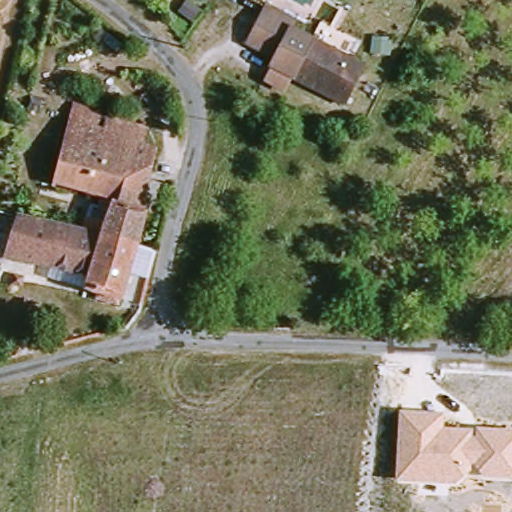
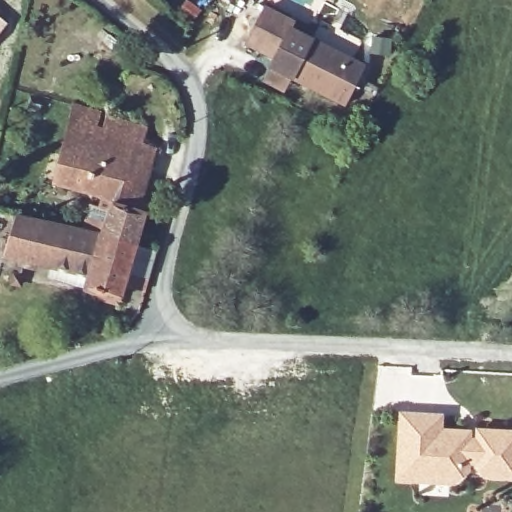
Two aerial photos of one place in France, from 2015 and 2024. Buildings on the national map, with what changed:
unchanged [(297,24),(294,30),(368,64),(349,104),(277,70),(280,61),(249,46),(267,9),(297,24)]
new [(0,33),(0,16),(9,23),(0,33)]
unchanged [(114,205),(55,189),(73,125),(103,133),(107,119),(146,130),(142,145),(154,147),(139,216),(145,218),(137,248),(104,240),(114,205)]
unchanged [(5,255),(7,248),(0,246),(0,239),(8,212),(104,240),(137,248),(123,299),(85,288),(89,278),(5,255)]
unchanged [(399,411),(444,415),(443,426),(512,430),(512,480),(466,475),(456,485),(394,481),(399,411)]

